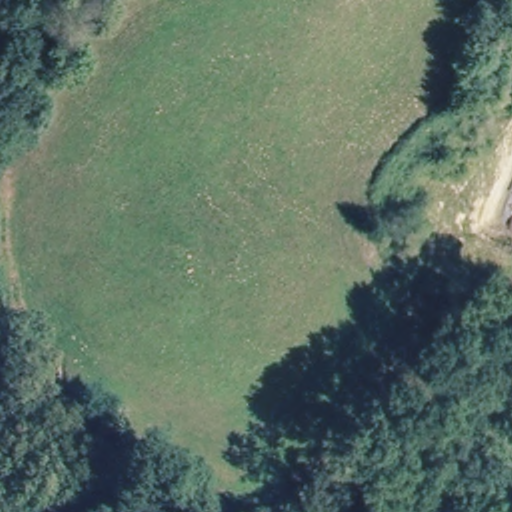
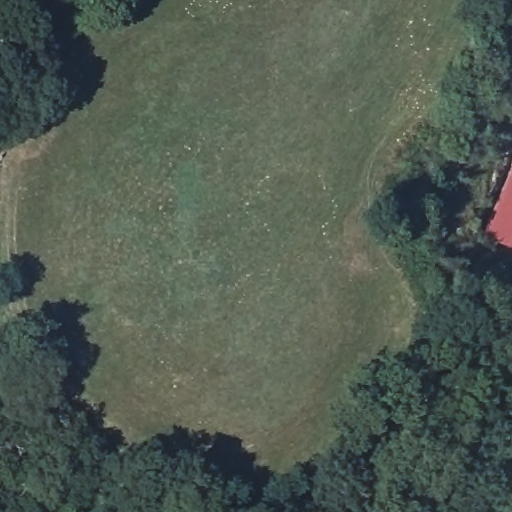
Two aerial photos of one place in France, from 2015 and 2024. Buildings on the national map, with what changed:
new [(482,236),(512,167),(512,249),(482,236)]

